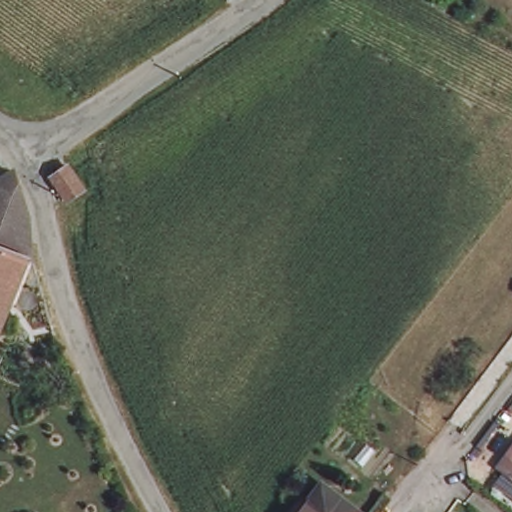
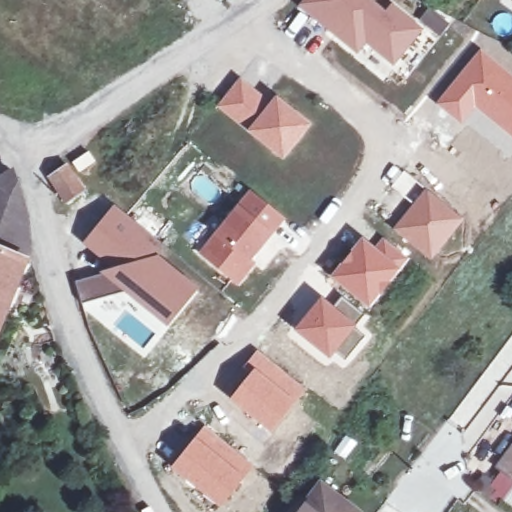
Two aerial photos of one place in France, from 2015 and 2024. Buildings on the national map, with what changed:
new [(375,0),(383,7),(391,0),(393,0),(417,20),(430,5),(450,21),(437,37),(426,28),(392,70),(390,68),(388,69),(366,49),(360,55),(358,54),(357,56),(296,5),(300,0),(375,0)]
new [(480,47),(512,73),(512,140),(475,112),(463,126),(435,102),(480,47)]
new [(240,75),(270,99),(245,130),(215,106),(240,75)]
new [(270,99),(275,93),(313,123),(282,161),(245,130),(270,99)]
unchanged [(0,184),(12,170),(21,189),(21,197),(19,234),(0,225),(0,184)]
unchanged [(79,193),(63,203),(49,181),(65,170),(79,193)]
new [(425,186),(465,219),(431,261),(391,228),(425,186)]
new [(250,188),(286,219),(252,260),(256,264),(237,287),(197,254),(250,188)]
new [(100,271),(98,263),(100,262),(81,242),(114,203),(166,249),(162,254),(200,286),(167,325),(124,291),(80,302),(74,279),(100,271)]
unchanged [(17,262),(18,271),(10,268),(0,294),(0,225),(19,234),(17,262)]
new [(362,236),(373,245),(382,235),(410,259),(368,308),(329,276),(362,236)]
new [(321,295),(333,305),(340,297),(363,315),(330,360),(292,329),(321,295)]
new [(251,369),(245,363),(257,348),(307,389),(271,433),(229,399),(251,369)]
new [(204,425),(255,465),(220,508),(170,467),(204,425)]
unchanged [(497,471),(512,453),(512,482),(497,471)]
unchanged [(301,502),(308,507),(320,491),(349,512),(294,512),(301,502)]

